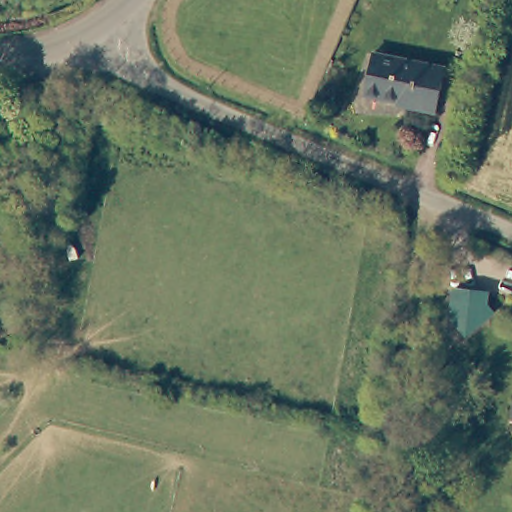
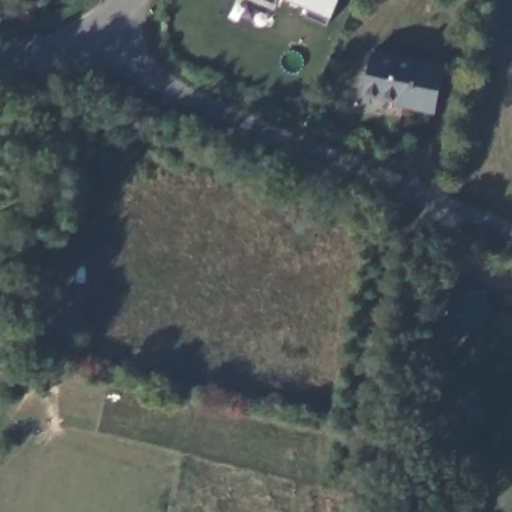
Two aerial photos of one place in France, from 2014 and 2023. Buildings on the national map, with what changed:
new [(273,4),(265,0),(276,0),(273,4)]
new [(327,26),(308,17),(310,11),(285,0),(339,0),(327,26)]
unchanged [(444,68),(437,110),(408,105),(409,101),(366,93),(373,51),(444,68)]
unchanged [(449,318),(450,292),(484,294),(483,307),(488,314),(463,335),(449,318)]
unchanged [(512,404),(512,416),(509,416),(512,404)]

